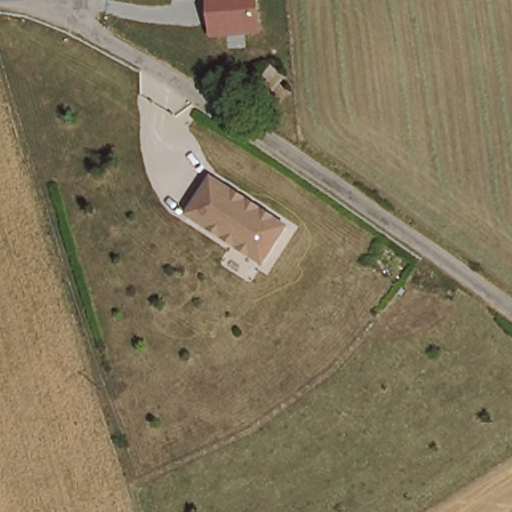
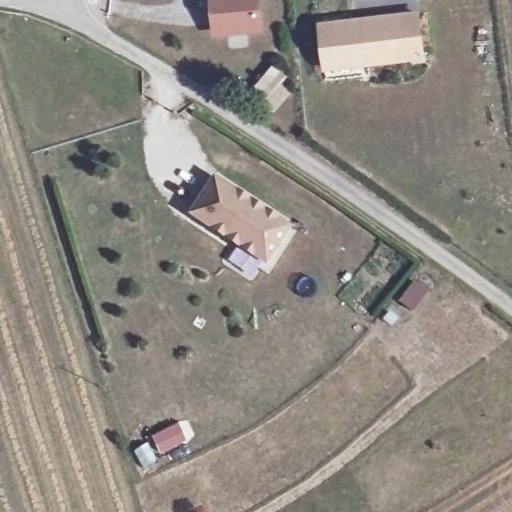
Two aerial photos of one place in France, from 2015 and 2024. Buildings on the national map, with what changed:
unchanged [(210,38),(208,0),(258,0),(261,32),(210,38)]
new [(322,70),(316,21),(421,10),(426,59),(322,70)]
unchanged [(288,76),(281,83),(291,92),(273,109),(251,86),(273,61),(288,76)]
unchanged [(216,180),(290,229),(267,264),(193,215),(216,180)]

